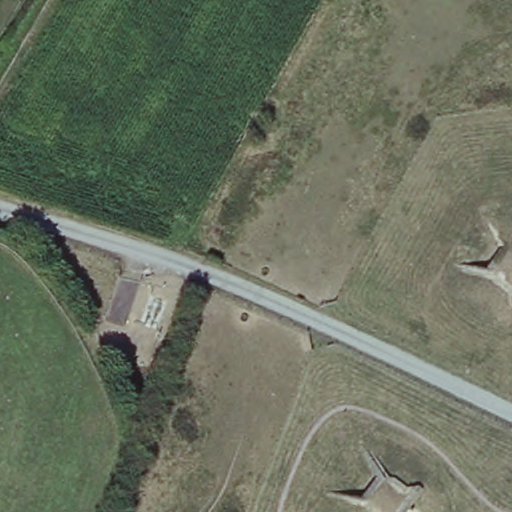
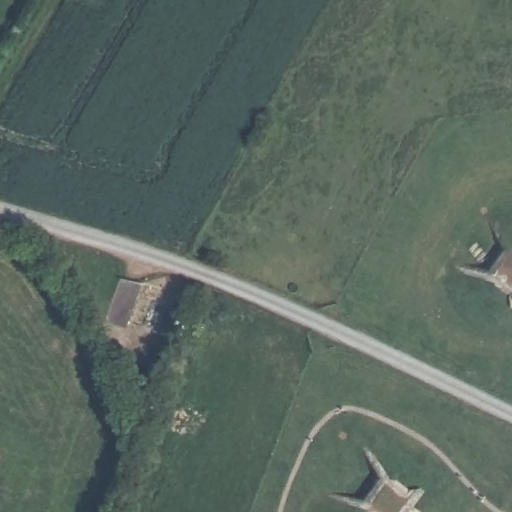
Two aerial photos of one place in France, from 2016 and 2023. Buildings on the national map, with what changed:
unchanged [(512,246),(512,295),(511,295),(477,272),(501,239),(512,246)]
unchanged [(378,476),(412,495),(399,512),(354,512),(378,476)]

